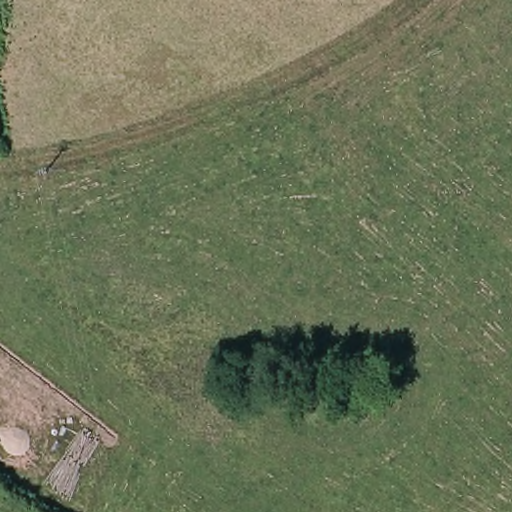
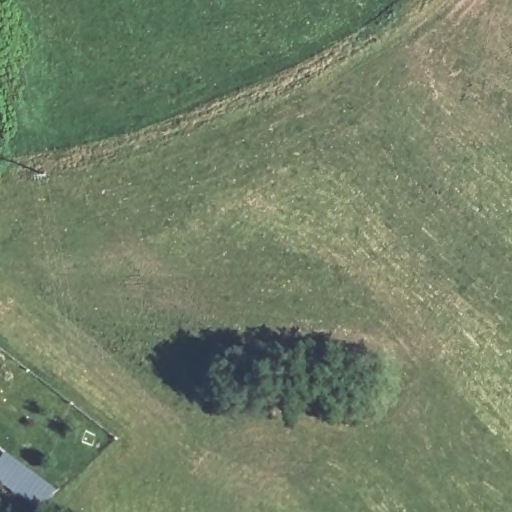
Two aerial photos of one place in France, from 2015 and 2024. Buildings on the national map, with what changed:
new [(41,512),(0,482),(0,464),(7,454),(58,491),(43,512),(41,512)]

